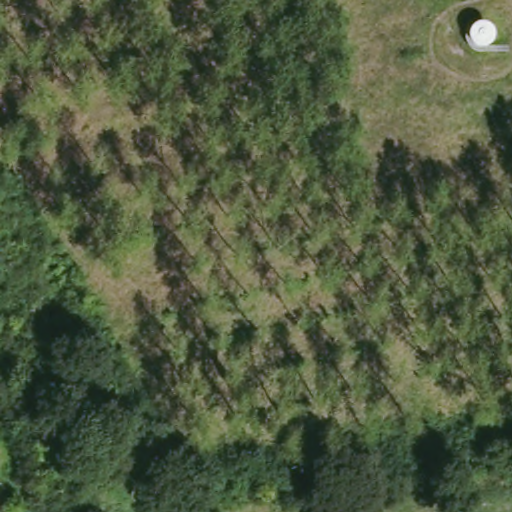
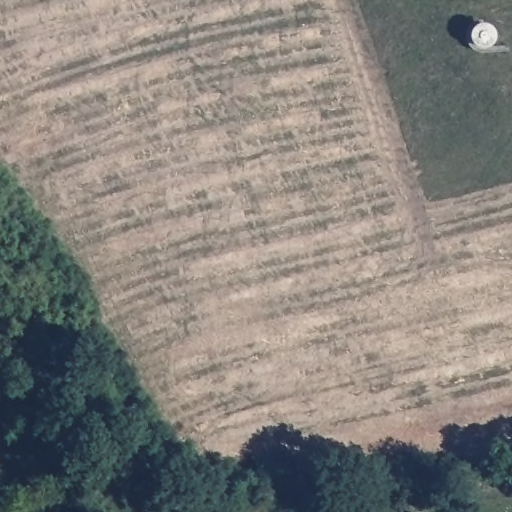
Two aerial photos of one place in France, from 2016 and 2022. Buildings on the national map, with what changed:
unchanged [(494,45),(490,48),(485,50),(477,49),(472,44),(470,37),(470,30),(475,25),(482,23),(491,25),(495,31),(494,45)]

